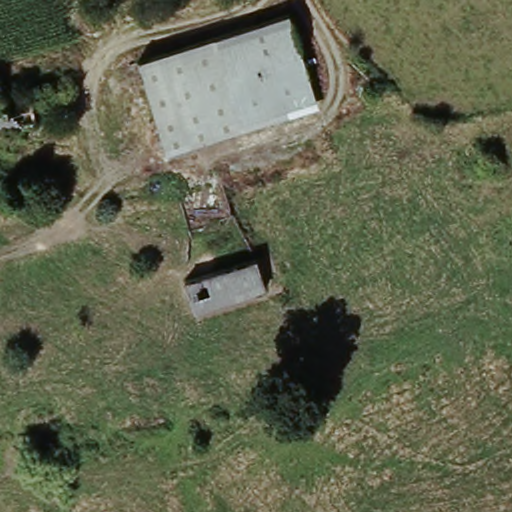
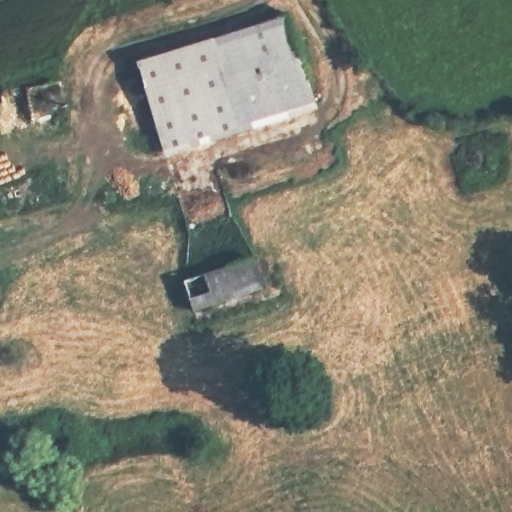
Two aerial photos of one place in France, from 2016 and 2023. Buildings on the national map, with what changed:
unchanged [(289,20),(302,60),(226,85),(213,43),(289,20)]
unchanged [(226,85),(241,132),(166,155),(139,67),(183,53),(212,44),(213,43),(226,85)]
unchanged [(302,60),(316,108),(241,132),(226,85),(302,60)]
unchanged [(255,260),(264,288),(194,310),(185,281),(255,260)]

